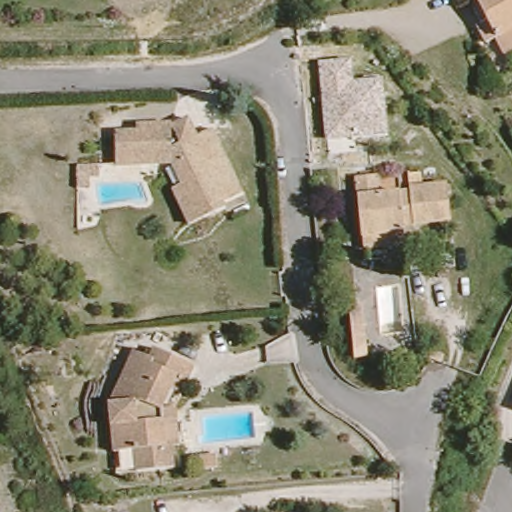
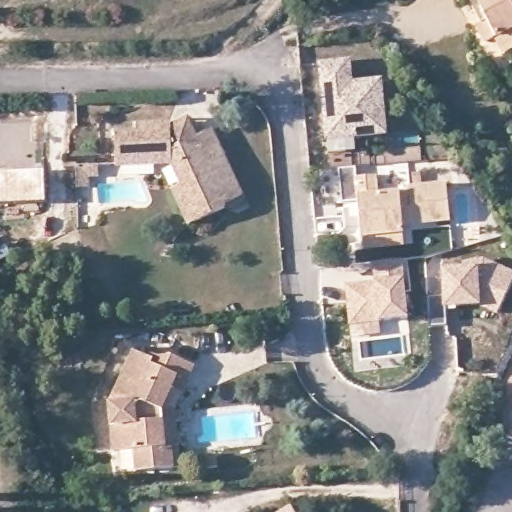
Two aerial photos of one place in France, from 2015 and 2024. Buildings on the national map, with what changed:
unchanged [(502,43),(491,48),(482,30),(488,27),(474,1),(460,8),(457,0),(512,0),(512,55),(509,56),(502,43)]
unchanged [(352,60),(353,83),(384,81),(388,136),(324,142),(316,61),(352,60)]
unchanged [(181,184),(171,164),(117,165),(117,130),(135,129),(137,123),(171,123),(188,115),(198,135),(212,128),(221,148),(242,194),(224,201),(226,207),(203,217),(188,224),(171,188),(181,184)]
unchanged [(99,166),(98,178),(90,178),(89,188),(76,189),(76,166),(99,166)]
unchanged [(363,249),(362,236),(358,177),(377,175),(379,192),(408,189),(409,186),(447,183),(450,220),(402,224),(402,233),(403,245),(363,249)]
new [(512,271),(512,283),(499,311),(481,307),(442,308),(440,259),(482,258),(512,271)]
new [(372,278),(371,263),(404,261),(408,319),(379,322),(380,334),(350,337),(342,283),(372,278)]
unchanged [(184,445),(177,445),(178,468),(142,471),(138,450),(119,452),(114,402),(137,352),(152,358),(158,348),(199,365),(193,380),(183,375),(168,408),(181,407),(184,445)]

